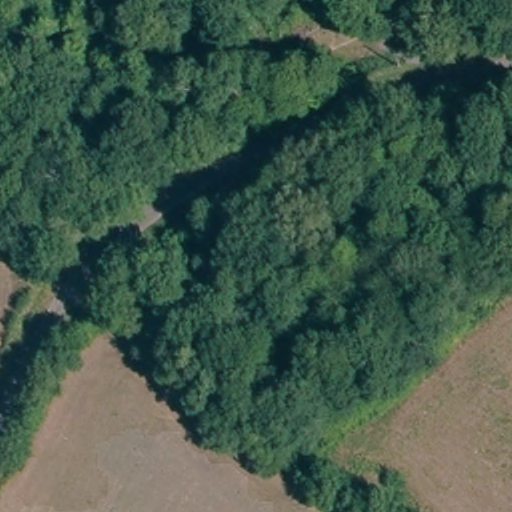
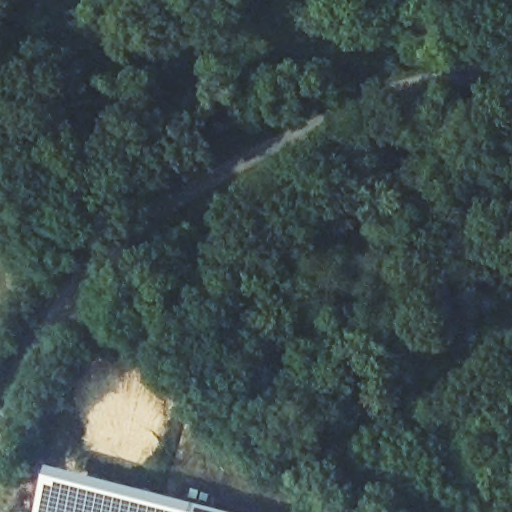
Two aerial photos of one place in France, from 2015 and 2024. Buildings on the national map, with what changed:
new [(55,471),(55,473),(75,478),(74,480),(122,493),(123,489),(149,496),(150,492),(223,512),(41,512),(48,470),(55,471)]

